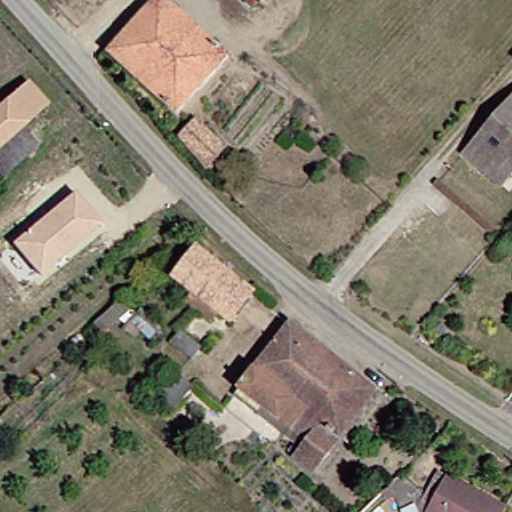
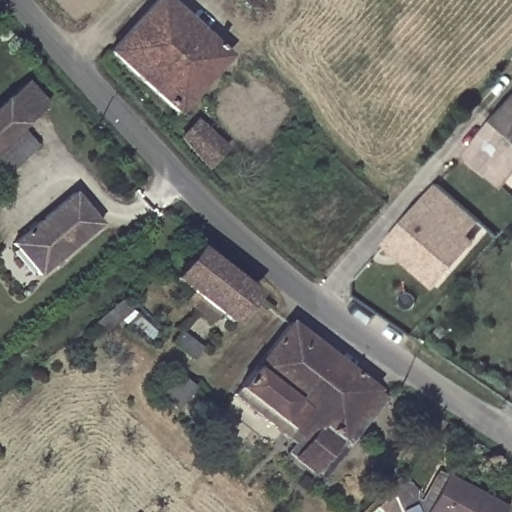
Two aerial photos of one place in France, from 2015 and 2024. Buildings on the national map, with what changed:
unchanged [(166,0),(222,51),(169,108),(107,50),(150,0),(166,0)]
unchanged [(42,100),(17,120),(0,135),(0,97),(22,78),(42,100)]
unchanged [(484,176),(461,156),(512,97),(512,173),(505,181),(499,188),(484,176)]
unchanged [(0,135),(17,120),(34,140),(0,167),(0,135)]
unchanged [(202,164),(174,135),(187,120),(217,147),(202,164)]
new [(395,252),(383,241),(422,196),(433,184),(451,198),(474,218),(462,231),(471,238),(438,276),(432,284),(395,252)]
unchanged [(12,244),(77,190),(103,223),(40,276),(12,244)]
unchanged [(181,279),(204,251),(262,300),(242,330),(229,320),(220,332),(194,311),(204,299),(197,294),(187,306),(179,300),(190,289),(181,279)]
unchanged [(202,328),(191,341),(209,356),(200,366),(177,347),(187,336),(182,331),(192,320),(202,328)]
unchanged [(292,443),(252,410),(229,390),(287,322),(372,387),(382,395),(344,442),(334,436),(308,470),(291,457),(284,452),(292,443)]
unchanged [(199,399),(182,422),(166,411),(184,387),(199,399)]
unchanged [(423,510),(426,505),(417,501),(432,473),(440,477),(442,474),(502,505),(498,512),(426,512),(423,510)]

